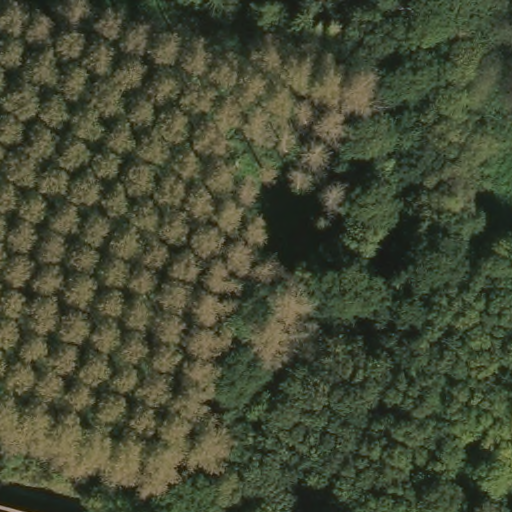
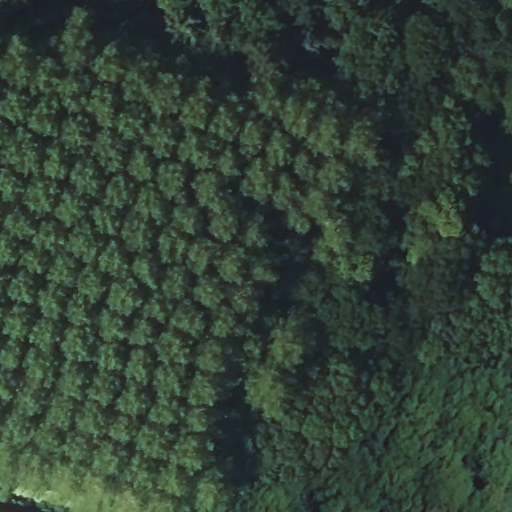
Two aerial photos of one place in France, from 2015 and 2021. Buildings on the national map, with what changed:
[]

